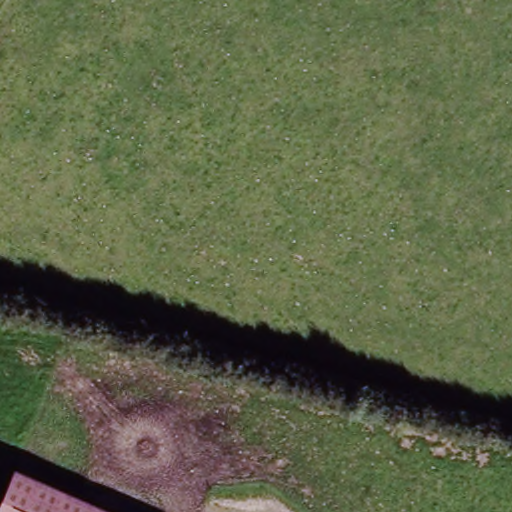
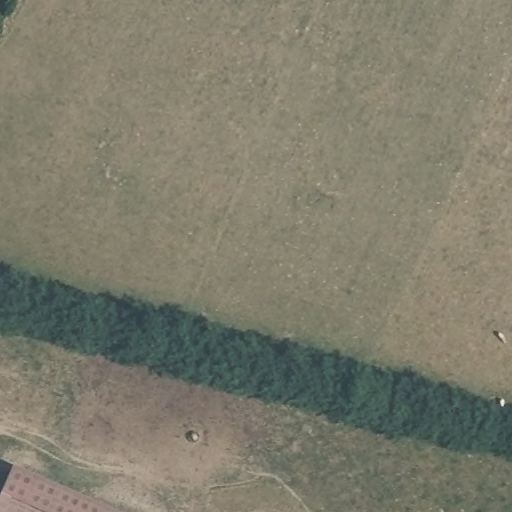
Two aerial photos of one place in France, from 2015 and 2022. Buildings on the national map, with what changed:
unchanged [(0,512),(0,495),(13,466),(111,512),(0,512)]

